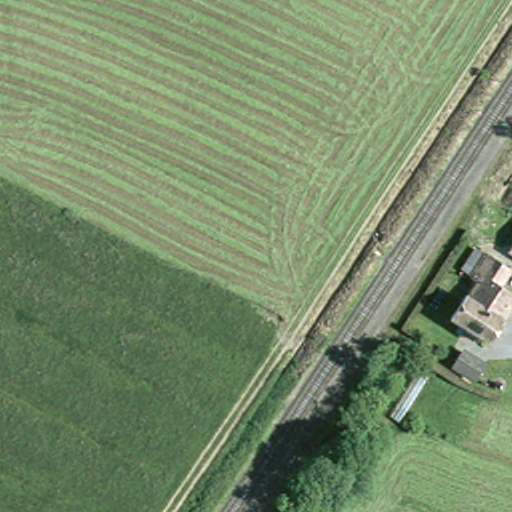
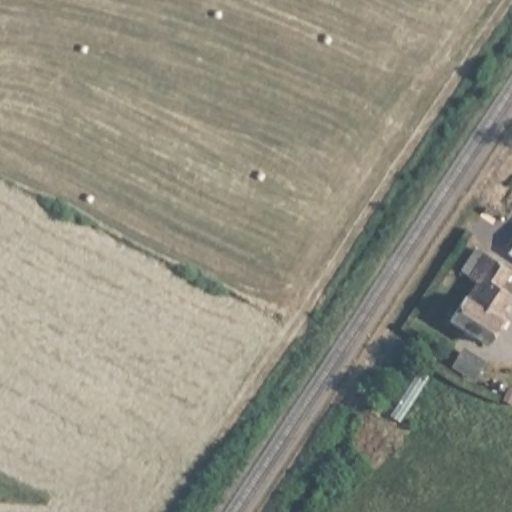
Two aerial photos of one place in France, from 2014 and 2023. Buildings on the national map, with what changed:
unchanged [(467,328),(462,334),(452,327),(456,321),(441,311),(456,289),(459,291),(469,274),(463,270),(479,246),(504,263),(492,281),(509,292),(480,336),(467,328)]
unchanged [(475,371),(467,384),(447,372),(455,359),(475,371)]

